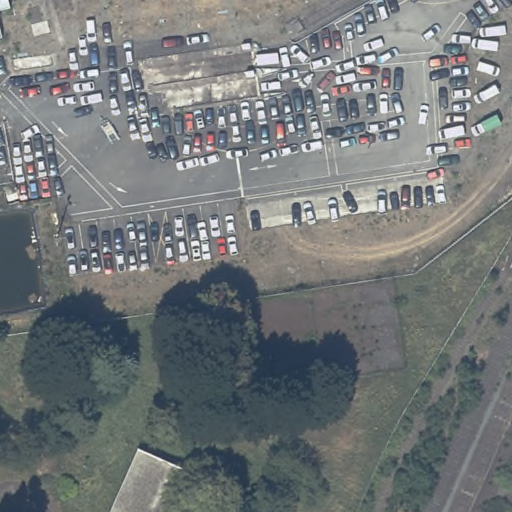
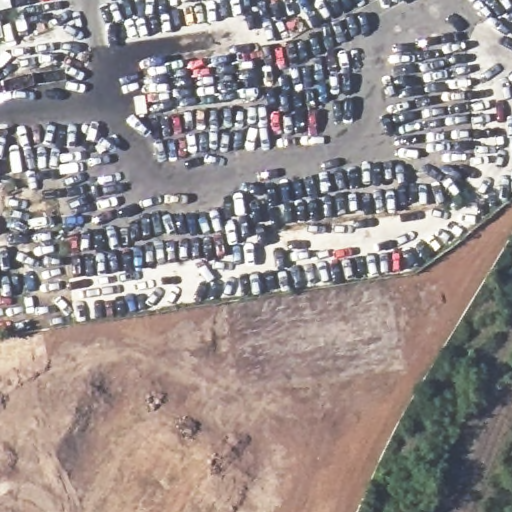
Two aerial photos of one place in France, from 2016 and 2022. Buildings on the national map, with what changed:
unchanged [(14,9),(0,11),(0,0),(12,0),(14,9)]
unchanged [(6,37),(0,38),(0,19),(2,19),(6,37)]
demolished [(194,478),(179,512),(112,512),(139,453),(194,478)]

